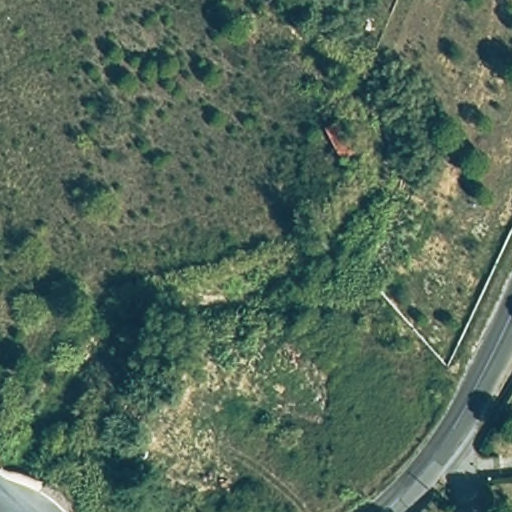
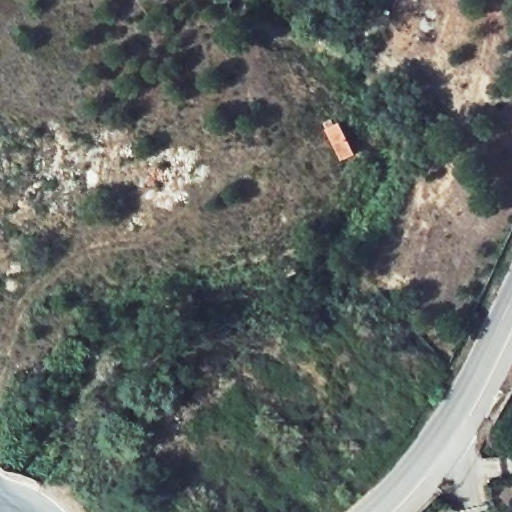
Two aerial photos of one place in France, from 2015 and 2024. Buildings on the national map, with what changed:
unchanged [(338,121),(353,155),(338,161),(323,131),(338,121)]

